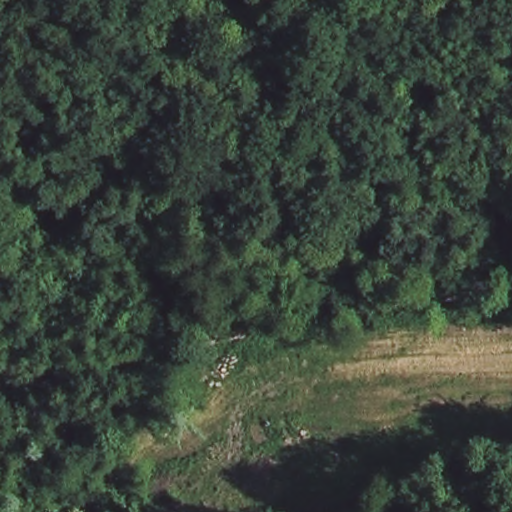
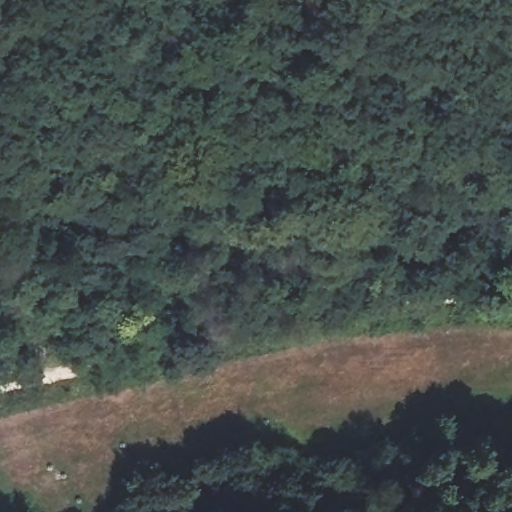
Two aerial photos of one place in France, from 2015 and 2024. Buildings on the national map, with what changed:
[]

